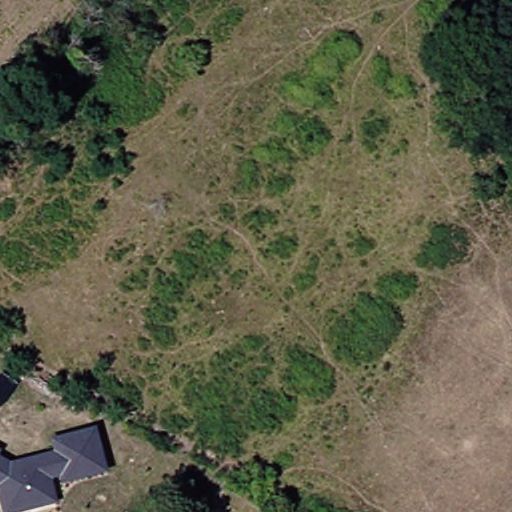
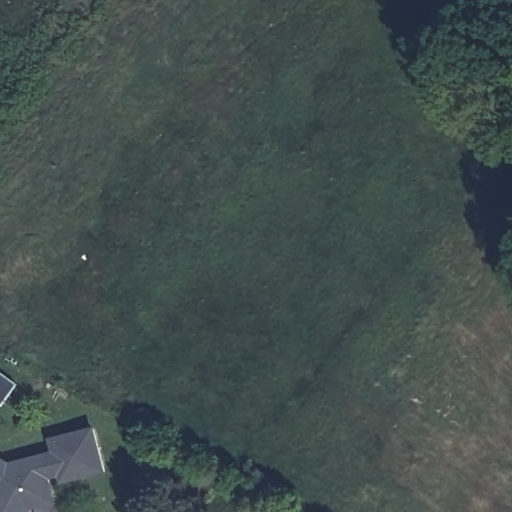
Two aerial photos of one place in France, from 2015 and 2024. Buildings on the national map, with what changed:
unchanged [(107,472),(60,483),(58,477),(50,479),(56,504),(24,512),(2,512),(0,507),(0,456),(10,461),(54,451),(50,439),(96,427),(107,472)]
unchanged [(0,453),(0,448),(1,449),(0,453)]

